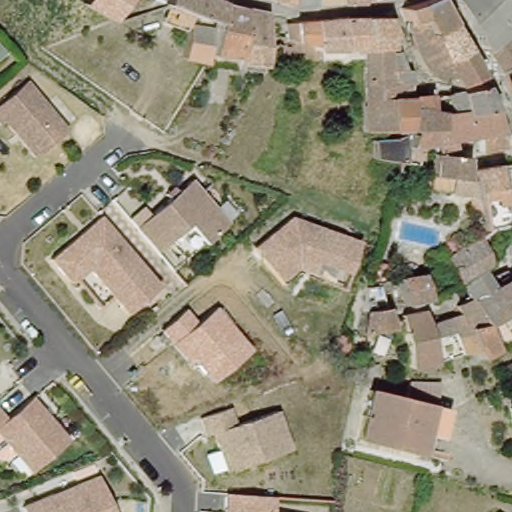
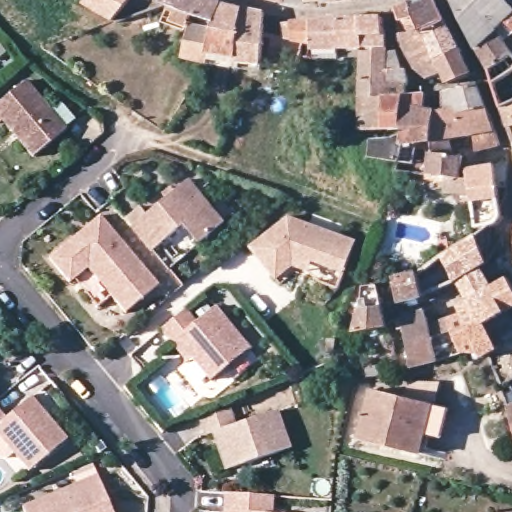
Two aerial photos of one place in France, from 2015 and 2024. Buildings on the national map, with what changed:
unchanged [(87,5),(90,0),(129,0),(119,17),(114,19),(87,5)]
unchanged [(165,0),(214,0),(217,1),(220,2),(208,24),(163,3),(165,0)]
unchanged [(450,86),(448,82),(430,83),(412,63),(403,49),(397,31),(397,9),(411,6),(435,0),(448,25),(461,49),(475,76),(450,86)]
unchanged [(478,46),(453,0),(512,0),(512,29),(507,20),(497,30),(507,50),(488,63),(478,46)]
unchanged [(186,28),(205,32),(208,24),(220,2),(242,9),(225,70),(205,67),(179,63),(186,28)]
unchanged [(242,9),(262,14),(260,44),(255,75),(225,70),(242,9)]
unchanged [(283,53),(284,41),(288,41),(292,15),(298,14),(342,13),(362,11),(387,9),(384,50),(383,65),(400,66),(403,71),(403,81),(403,98),(421,97),(425,114),(432,114),(454,108),(461,106),(485,98),(503,143),(479,151),(474,133),(467,136),(434,143),(401,150),(400,160),(377,157),(380,129),(357,129),(359,97),(360,48),(340,46),(327,46),(326,59),(310,56),(283,53)]
unchanged [(512,69),(512,106),(505,109),(493,77),(512,69)]
unchanged [(60,142),(25,169),(0,138),(0,109),(20,93),(60,142)]
unchanged [(512,106),(512,129),(505,109),(512,106)]
unchanged [(495,154),(505,201),(504,211),(482,218),(480,211),(472,188),(472,186),(463,160),(495,154)]
unchanged [(432,171),(431,156),(447,155),(455,155),(457,162),(463,160),(472,186),(433,187),(432,171)]
unchanged [(225,224),(200,245),(184,226),(155,250),(127,216),(141,205),(152,212),(190,179),(225,224)]
unchanged [(68,283),(47,258),(97,216),(157,284),(124,316),(85,270),(68,283)]
unchanged [(297,261),(277,278),(250,246),(288,217),(356,240),(343,274),(297,261)]
unchanged [(422,268),(433,321),(457,312),(452,304),(467,296),(460,281),(452,285),(440,255),(475,236),(492,265),(483,269),(494,286),(500,282),(512,301),(512,315),(489,327),(495,346),(460,355),(452,332),(437,339),(443,362),(415,367),(392,276),(422,268)]
unchanged [(387,280),(390,308),(392,328),(392,331),(355,338),(363,285),(387,280)]
unchanged [(192,359),(186,363),(161,330),(185,309),(198,321),(215,306),(250,348),(211,381),(192,359)]
unchanged [(373,388),(435,402),(422,450),(361,434),(373,388)]
unchanged [(28,398),(67,441),(27,473),(0,444),(0,413),(5,417),(28,398)]
unchanged [(213,437),(204,439),(201,421),(232,408),(240,422),(277,411),(290,448),(223,470),(213,437)]
unchanged [(97,478),(111,512),(22,512),(20,507),(97,478)]
unchanged [(272,499),(272,512),(225,512),(227,494),(272,499)]

